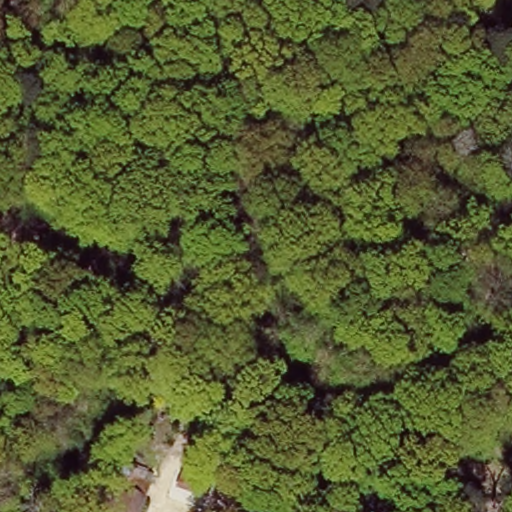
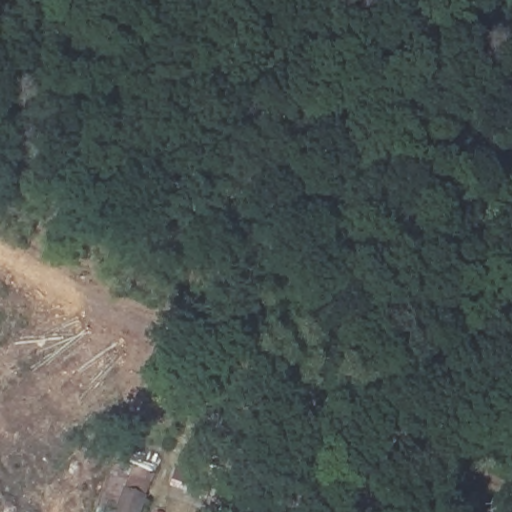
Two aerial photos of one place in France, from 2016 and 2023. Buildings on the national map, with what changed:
unchanged [(150,476),(136,512),(132,512),(116,506),(131,469),(150,476)]

